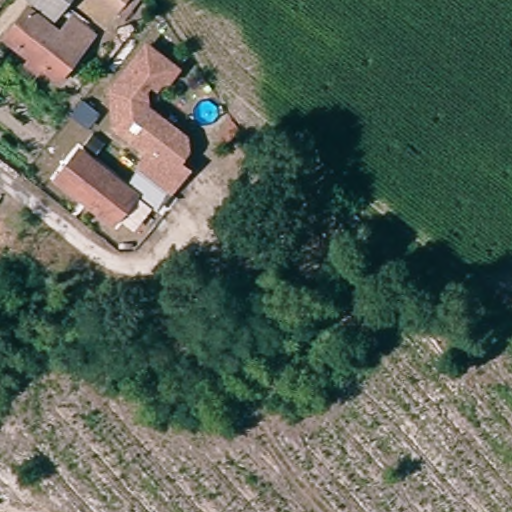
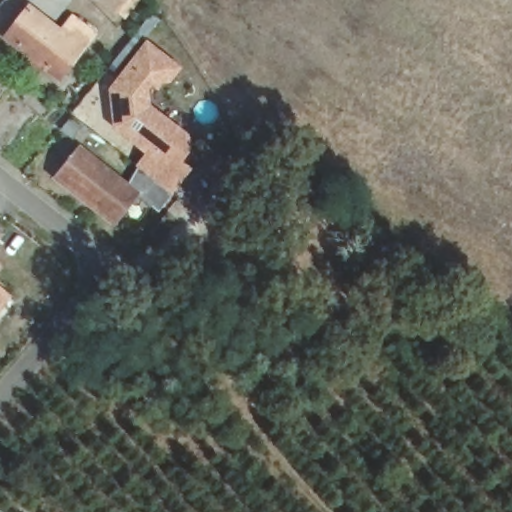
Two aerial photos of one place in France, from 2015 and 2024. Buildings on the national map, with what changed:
unchanged [(40,78),(21,65),(26,59),(0,39),(0,38),(25,0),(72,0),(66,10),(100,34),(58,84),(42,74),(40,78)]
unchanged [(109,0),(127,0),(120,9),(109,0)]
unchanged [(186,136),(187,149),(177,161),(186,168),(168,191),(137,166),(149,151),(116,125),(112,88),(148,43),(174,63),(174,70),(168,78),(162,79),(157,84),(152,79),(145,88),(147,105),(186,136)]
unchanged [(76,150),(132,195),(112,222),(55,178),(76,150)]
new [(0,310),(0,286),(12,296),(0,310)]

